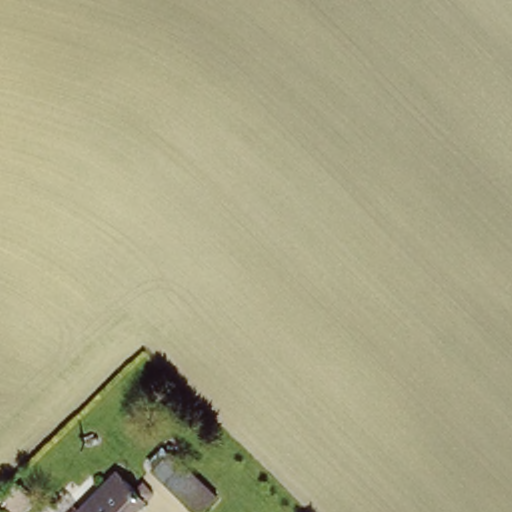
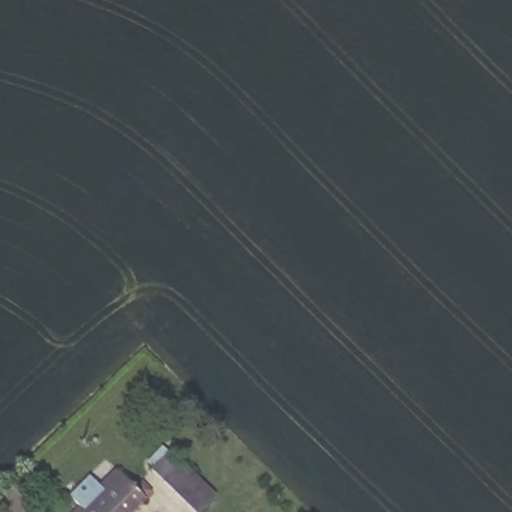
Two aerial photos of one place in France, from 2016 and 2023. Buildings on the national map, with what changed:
unchanged [(175,457),(219,500),(207,512),(192,512),(157,476),(175,457)]
unchanged [(88,498),(112,474),(132,493),(140,484),(150,494),(132,512),(74,512),(88,498)]

